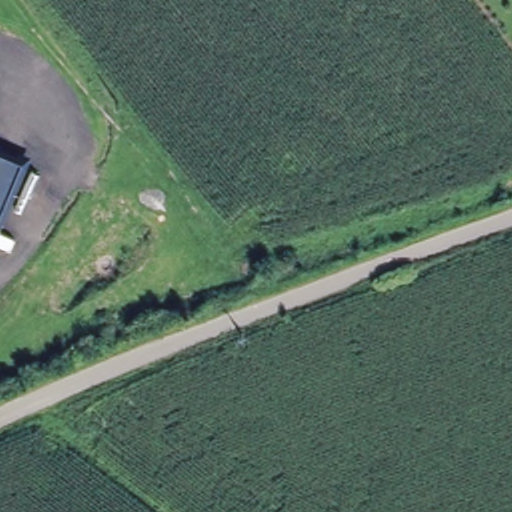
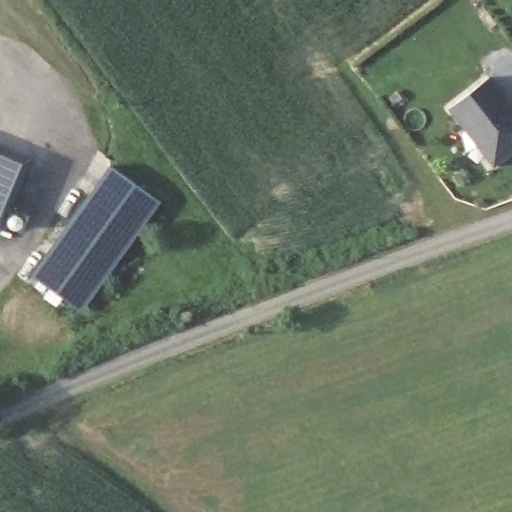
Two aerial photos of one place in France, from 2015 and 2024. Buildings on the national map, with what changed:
unchanged [(450,109),(489,76),(512,104),(512,152),(497,164),(485,149),(463,124),(450,109)]
demolished [(0,220),(0,151),(24,160),(0,220)]
new [(0,205),(0,154),(17,161),(0,205)]
new [(106,166),(156,200),(80,313),(30,279),(106,166)]

